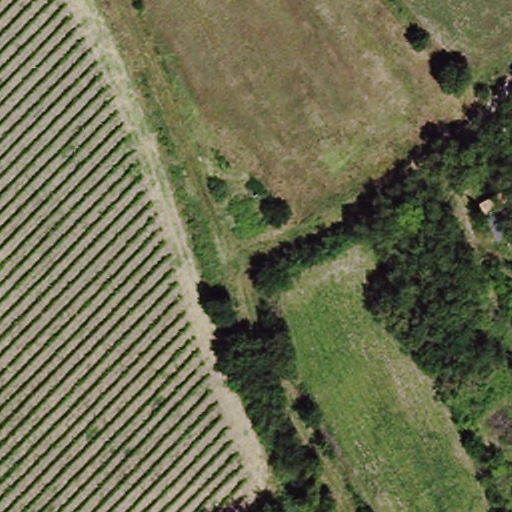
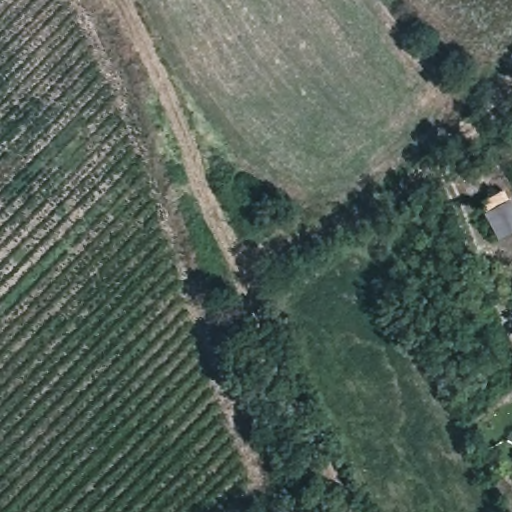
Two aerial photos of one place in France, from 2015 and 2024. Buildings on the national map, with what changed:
unchanged [(503,189),(512,204),(485,218),(478,202),(503,189)]

